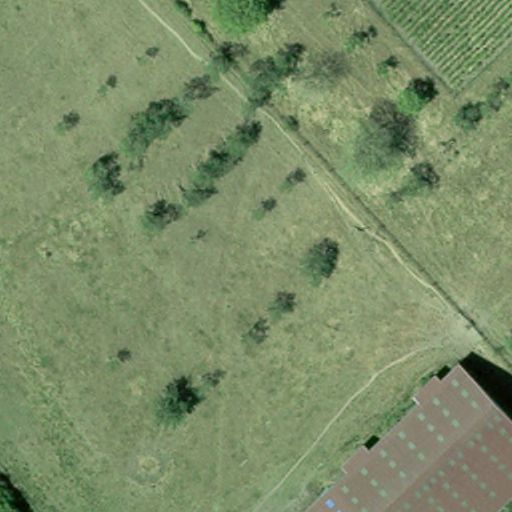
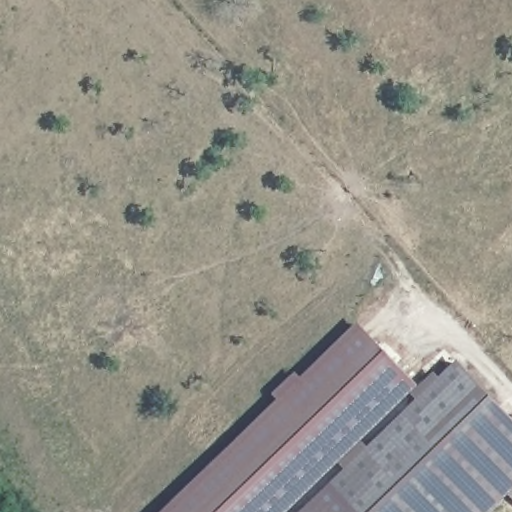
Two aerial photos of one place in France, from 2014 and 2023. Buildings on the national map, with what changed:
new [(285,512),(160,512),(278,399),(273,393),(295,371),(300,376),(357,321),(417,383),(285,512)]
unchanged [(512,496),(507,491),(485,512),(355,512),(327,485),(344,471),(338,463),(359,442),(366,446),(417,399),(411,394),(433,373),(440,376),(458,362),(512,415),(512,496)]
unchanged [(298,512),(327,485),(355,512),(298,512)]

